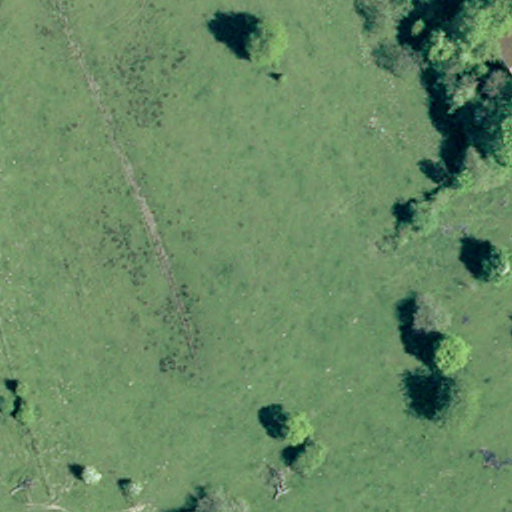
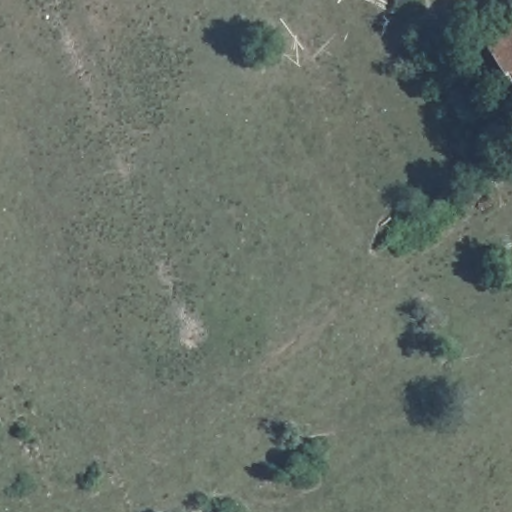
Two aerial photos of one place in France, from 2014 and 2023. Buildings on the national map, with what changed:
unchanged [(485,48),(512,32),(512,90),(485,48)]

